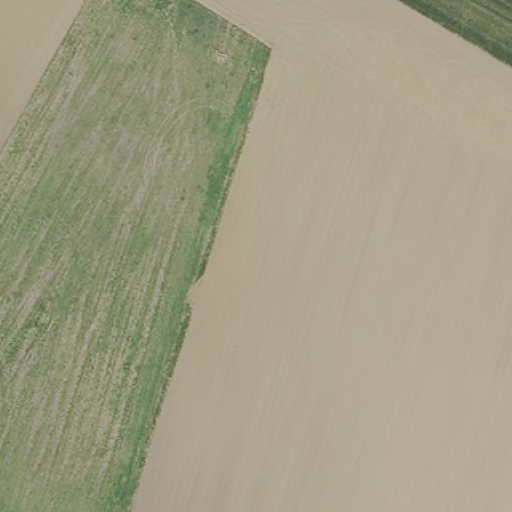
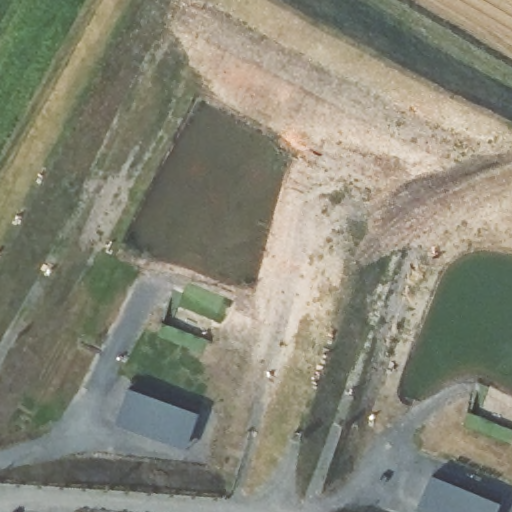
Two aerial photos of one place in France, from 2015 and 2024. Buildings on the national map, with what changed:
new [(114,426),(128,390),(198,416),(184,453),(114,426)]
new [(431,477),(499,506),(496,512),(417,512),(431,477)]

